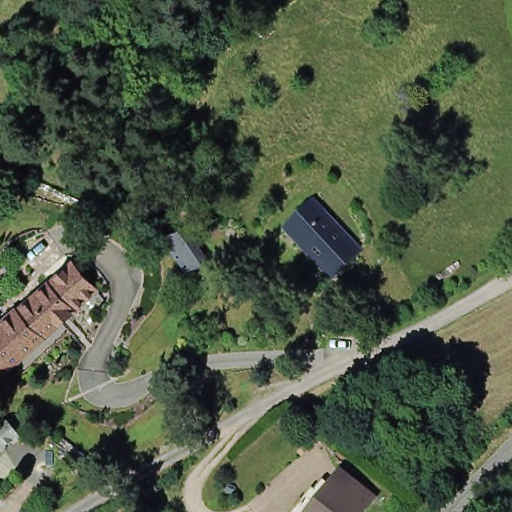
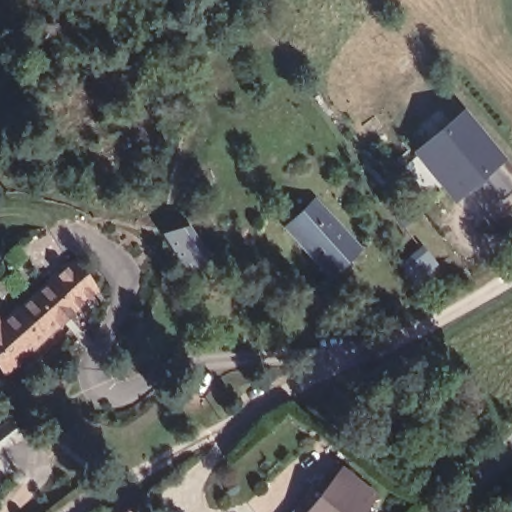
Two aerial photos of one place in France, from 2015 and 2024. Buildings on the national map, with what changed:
new [(467,119),(502,166),(456,202),(420,155),(467,119)]
unchanged [(299,242),(285,227),(316,197),(362,246),(330,275),(319,262),(309,252),(299,242)]
unchanged [(210,268),(182,275),(165,237),(192,231),(210,268)]
unchanged [(0,327),(1,328),(20,310),(22,311),(50,284),(52,285),(74,264),(97,290),(105,299),(90,313),(82,304),(11,368),(5,373),(0,368),(0,327)]
new [(24,437),(1,457),(15,475),(0,483),(0,425),(10,418),(24,437)]
demolished [(8,467),(0,457),(0,445),(20,430),(33,447),(8,467)]
unchanged [(319,495),(327,486),(335,492),(345,481),(374,504),(367,512),(301,512),(317,493),(319,495)]

